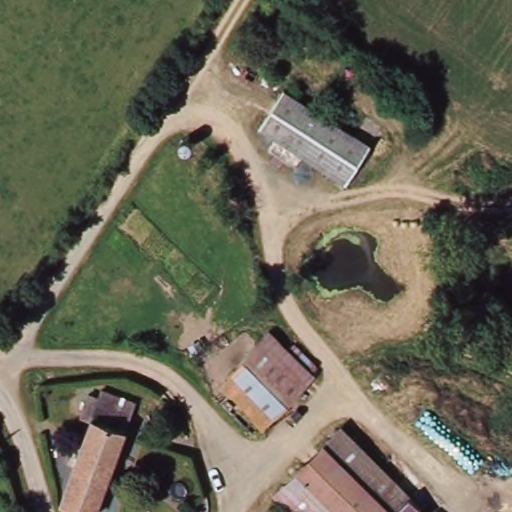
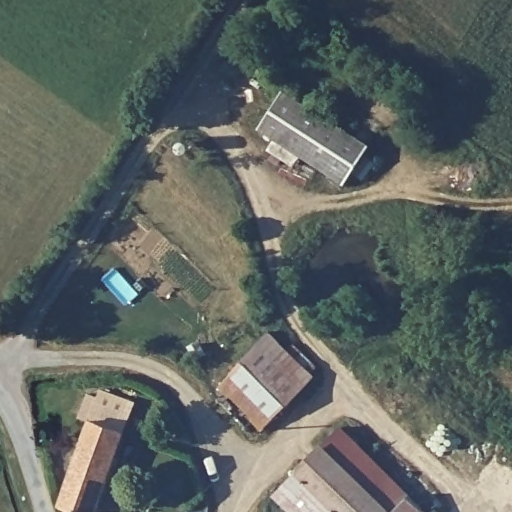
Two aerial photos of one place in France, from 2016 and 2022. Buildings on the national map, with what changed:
unchanged [(282,89),(371,146),(347,185),(257,129),(282,89)]
unchanged [(313,375),(260,428),(215,383),(267,330),(313,375)]
unchanged [(76,422),(85,398),(98,402),(101,396),(134,410),(91,512),(65,512),(53,507),(88,427),(76,422)]
unchanged [(273,487),(342,422),(370,451),(409,490),(432,512),(296,512),(273,487)]
unchanged [(512,511),(512,512),(511,512),(512,511)]

